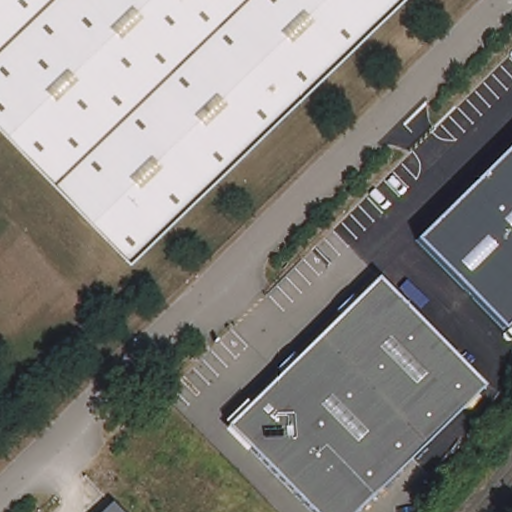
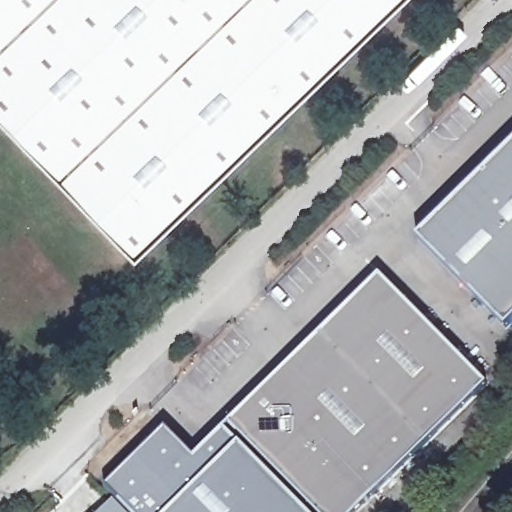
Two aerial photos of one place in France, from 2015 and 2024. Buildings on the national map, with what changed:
unchanged [(129,260),(0,126),(0,0),(399,0),(129,260)]
unchanged [(415,240),(512,145),(512,320),(503,328),(415,240)]
unchanged [(383,279),(490,389),(405,472),(365,512),(314,512),(231,428),(297,363),(383,279)]
new [(165,431),(195,463),(231,428),(245,441),(314,512),(127,512),(119,503),(106,488),(165,431)]
unchanged [(110,512),(119,503),(127,512),(110,512)]

